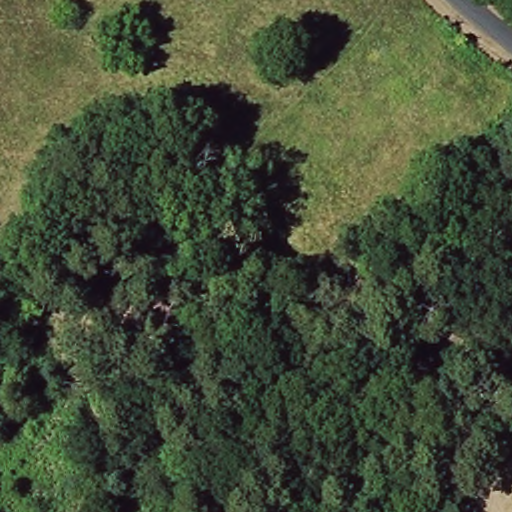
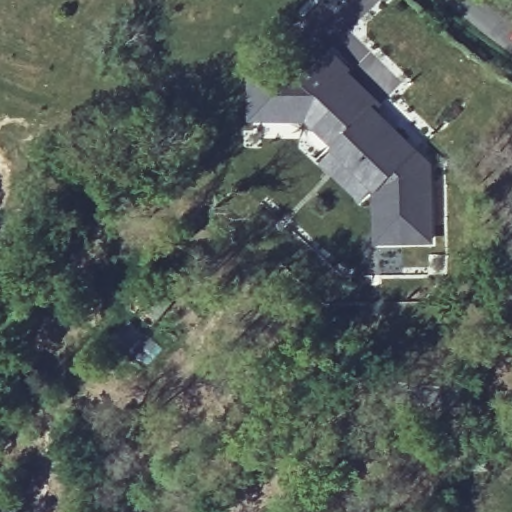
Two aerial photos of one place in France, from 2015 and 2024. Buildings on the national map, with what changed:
new [(355,71),(352,74),(382,102),(378,107),(432,160),(433,243),(374,245),(374,190),(360,203),(321,164),(335,150),(306,121),(250,122),(250,67),(293,67),(321,38),(355,71)]
new [(103,336),(137,297),(151,310),(159,302),(186,326),(145,373),(103,336)]

